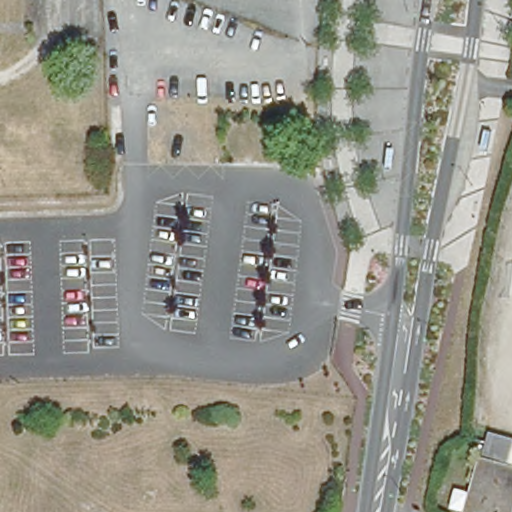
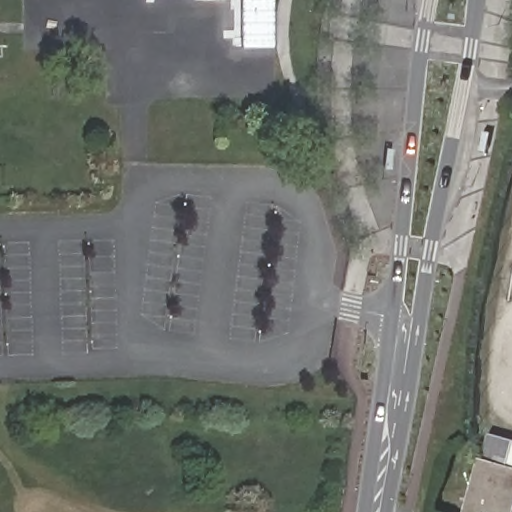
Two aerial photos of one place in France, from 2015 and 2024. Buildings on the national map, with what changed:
new [(242,48),(242,0),(273,0),(273,48),(242,48)]
unchanged [(480,457),(512,465),(512,512),(464,512),(480,457)]

